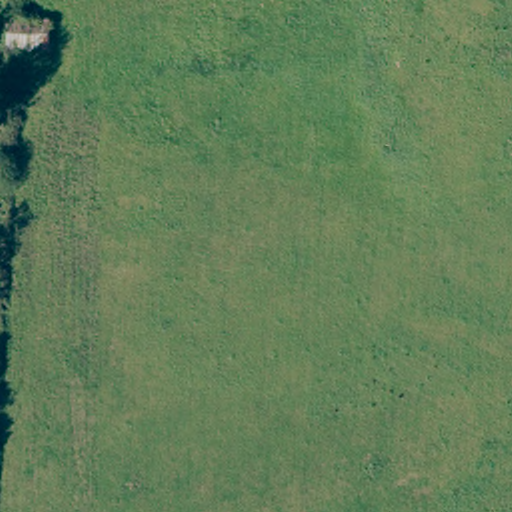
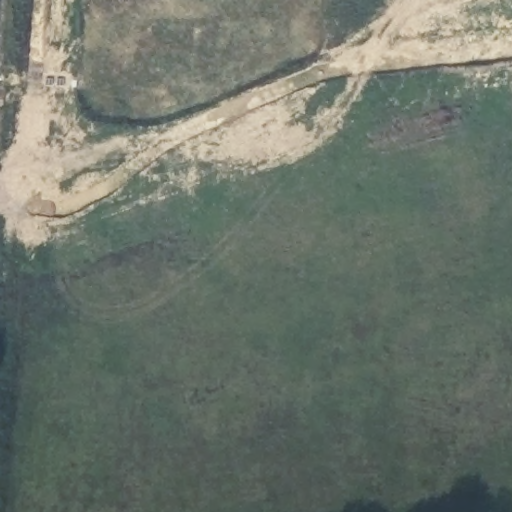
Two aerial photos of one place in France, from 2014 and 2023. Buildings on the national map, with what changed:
unchanged [(48,20),(46,56),(1,53),(3,19),(48,20)]

